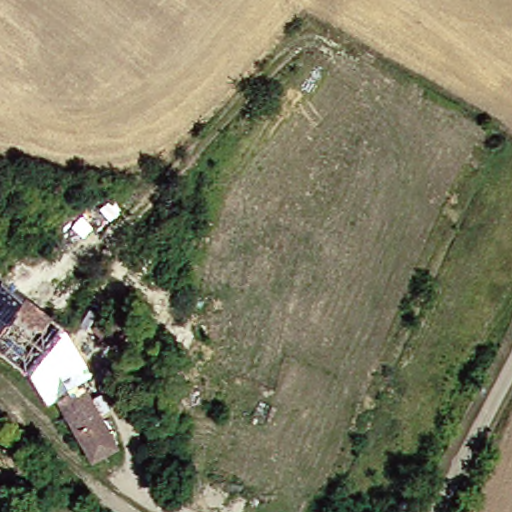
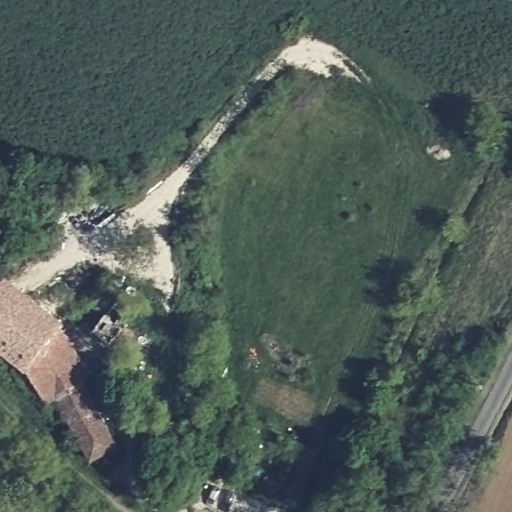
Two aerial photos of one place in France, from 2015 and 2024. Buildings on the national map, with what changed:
unchanged [(130,309),(116,330),(96,317),(109,296),(130,309)]
unchanged [(0,355),(0,303),(10,308),(15,301),(40,318),(49,305),(61,313),(50,333),(26,371),(0,355)]
unchanged [(40,403),(26,371),(50,333),(98,362),(83,385),(48,400),(40,403)]
unchanged [(48,400),(83,385),(115,450),(80,463),(48,400)]

